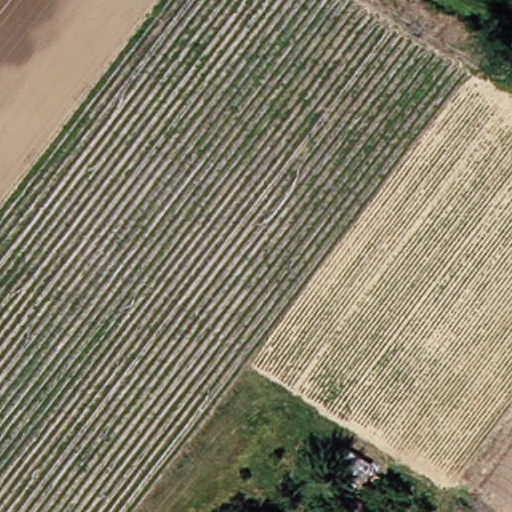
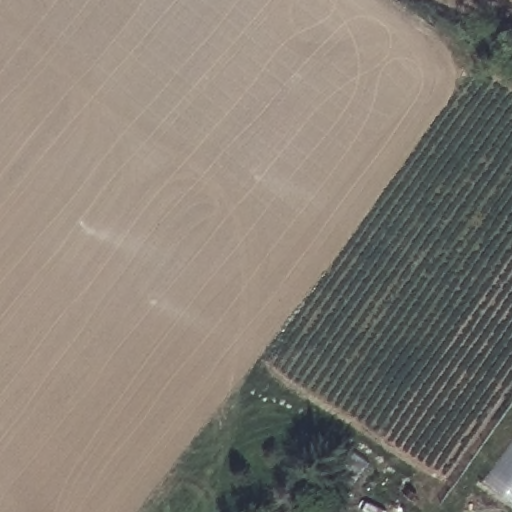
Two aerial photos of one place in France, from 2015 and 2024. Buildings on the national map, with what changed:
new [(512,438),(512,499),(482,478),(512,438)]

